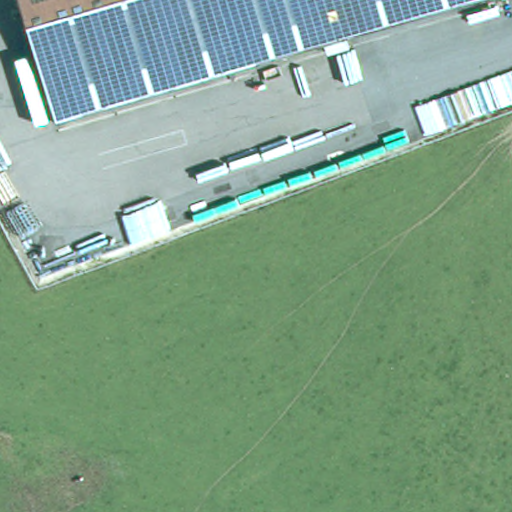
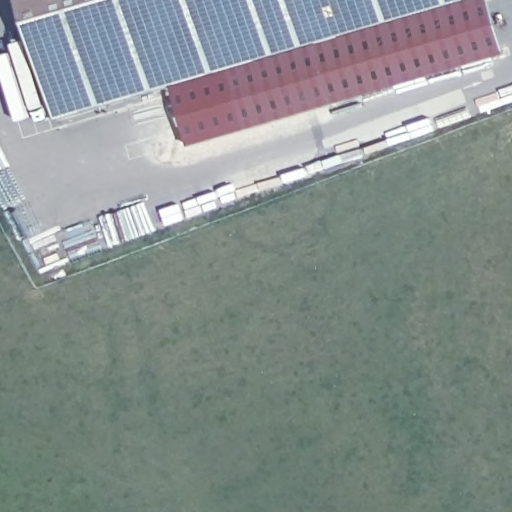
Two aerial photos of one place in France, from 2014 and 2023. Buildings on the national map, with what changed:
unchanged [(269,27),(53,92),(25,0),(340,0),(349,30),(277,52),(269,27)]
new [(507,54),(330,107),(313,41),(349,30),(467,0),(491,0),(507,54)]
unchanged [(349,30),(340,0),(468,0),(349,30)]
unchanged [(61,116),(53,92),(269,27),(277,52),(61,116)]

